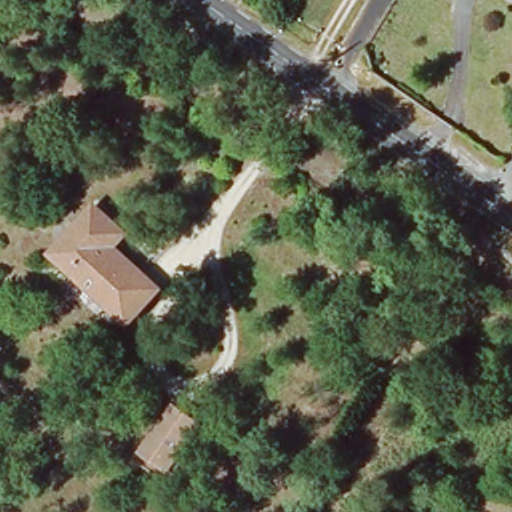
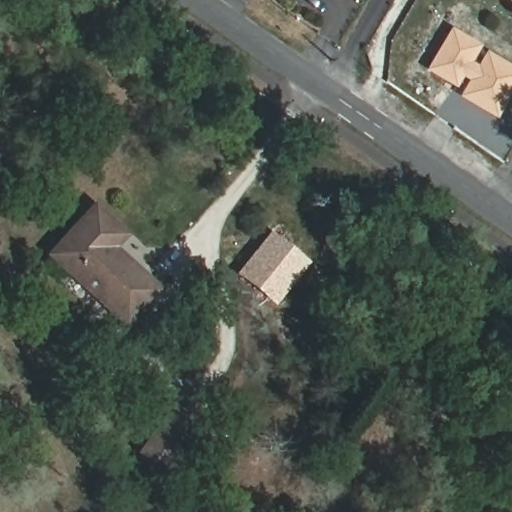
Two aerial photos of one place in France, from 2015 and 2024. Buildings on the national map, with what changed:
new [(482,45),(473,60),(479,64),(487,51),(512,66),(512,94),(497,119),(460,96),(469,80),(463,76),(456,87),(427,70),(452,27),(482,45)]
unchanged [(120,240),(107,254),(152,293),(123,326),(50,258),(91,214),(120,240)]
new [(309,262),(276,305),(237,274),(272,231),(309,262)]
unchanged [(175,408),(198,425),(167,470),(143,453),(175,408)]

